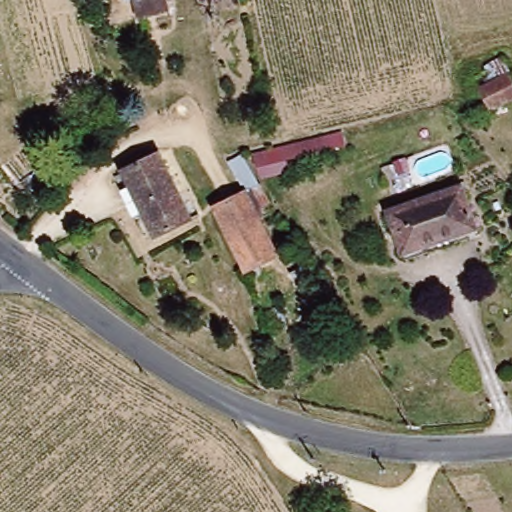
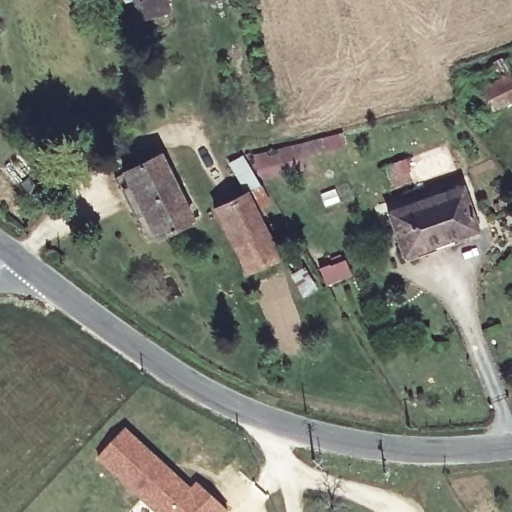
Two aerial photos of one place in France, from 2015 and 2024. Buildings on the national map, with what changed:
unchanged [(171,10),(139,21),(134,2),(125,7),(122,0),(168,0),(171,10)]
unchanged [(512,76),(512,104),(489,113),(474,72),(506,59),(512,76)]
demolished [(188,102),(206,96),(212,115),(194,121),(188,102)]
unchanged [(160,158),(186,223),(150,236),(127,171),(160,158)]
unchanged [(461,233),(466,243),(411,267),(389,213),(462,181),(480,224),(461,233)]
unchanged [(217,210),(249,195),(278,257),(246,272),(217,210)]
new [(195,490),(202,483),(230,509),(228,512),(136,512),(135,511),(146,498),(102,457),(129,428),(195,490)]

